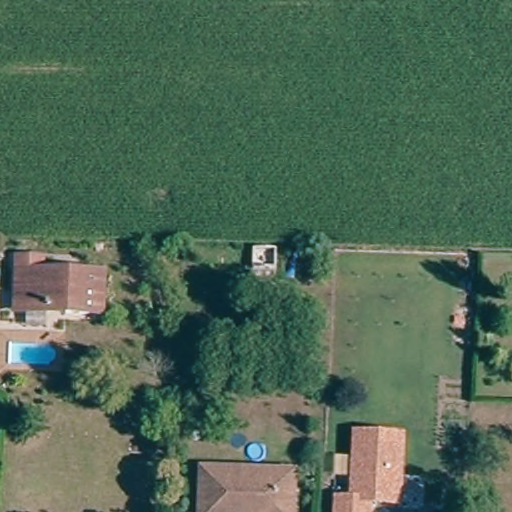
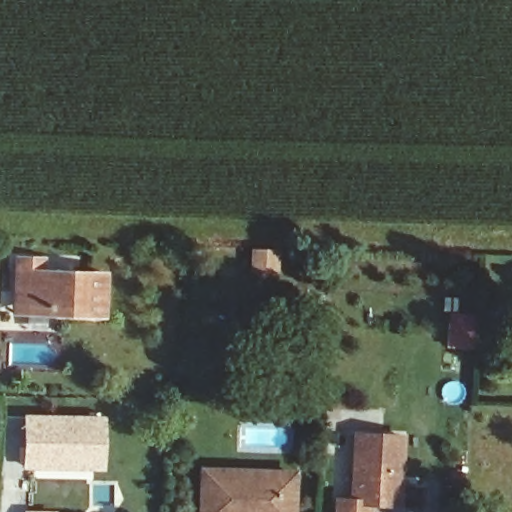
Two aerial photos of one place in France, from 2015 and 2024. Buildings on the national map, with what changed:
unchanged [(22,293),(23,259),(47,260),(47,272),(109,274),(108,315),(72,314),(22,313),(22,293)]
new [(103,419),(101,465),(26,464),(28,416),(103,419)]
unchanged [(349,495),(353,430),(406,433),(402,507),(372,506),(372,512),(332,512),(333,496),(349,495)]
unchanged [(297,512),(207,512),(209,465),(299,469),(297,512)]
new [(25,511),(58,510),(58,512),(25,512),(25,511)]

